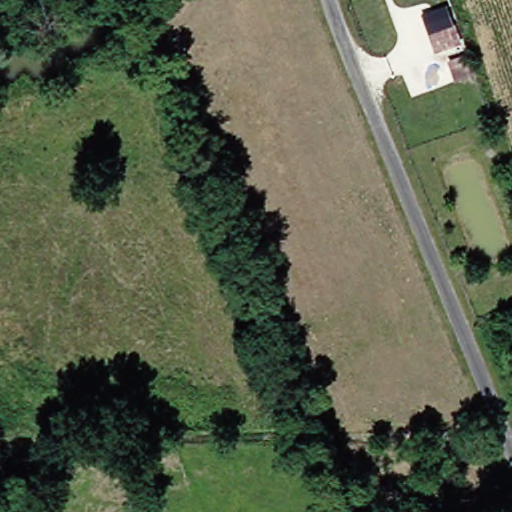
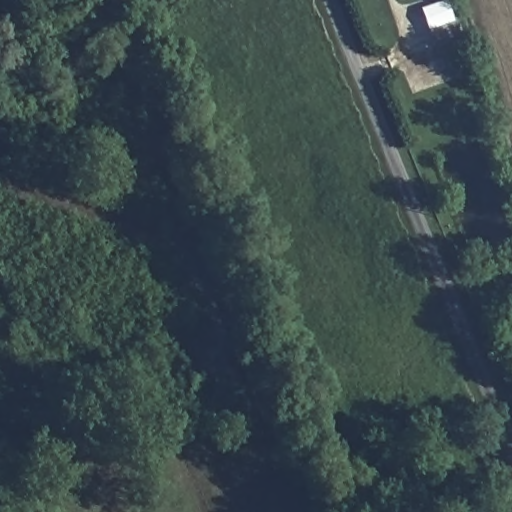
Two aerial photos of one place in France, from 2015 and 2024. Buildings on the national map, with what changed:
[]

